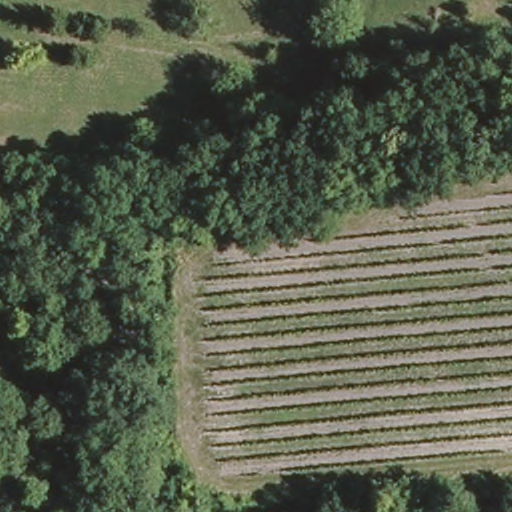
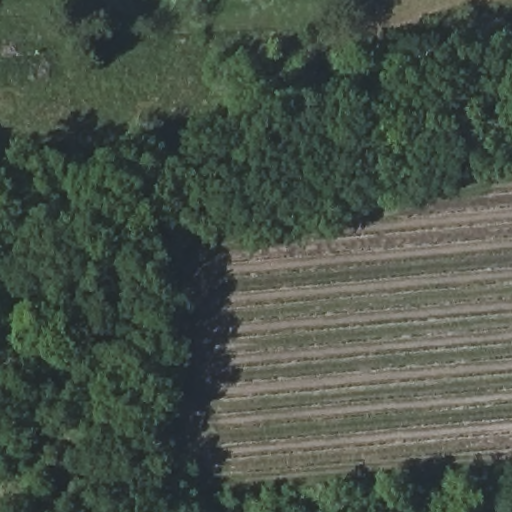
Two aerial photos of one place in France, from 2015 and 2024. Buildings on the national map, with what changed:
[]

